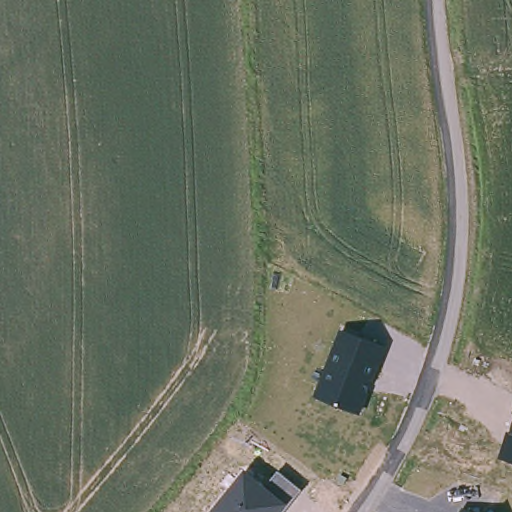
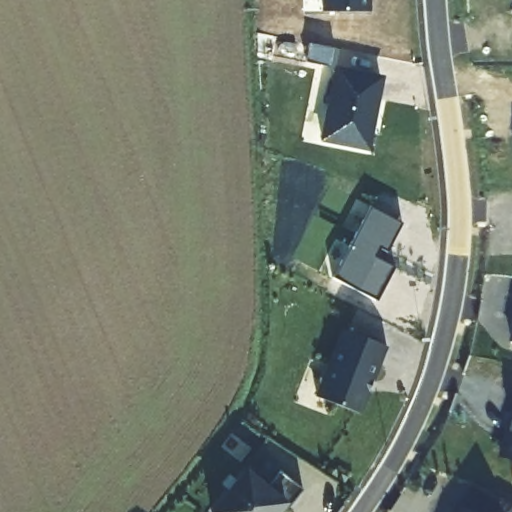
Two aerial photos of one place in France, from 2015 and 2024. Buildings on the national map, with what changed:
new [(323,10),(323,0),(371,0),(371,10),(323,10)]
new [(511,0),(512,0),(512,5),(511,5),(511,0)]
new [(320,140),(336,65),(385,75),(370,150),(320,140)]
new [(333,277),(371,207),(401,224),(387,250),(379,246),(373,257),(393,267),(377,300),(333,277)]
unchanged [(387,346),(360,415),(313,396),(340,328),(387,346)]
new [(512,333),(512,342),(510,342),(512,333)]
unchanged [(512,462),(498,458),(512,414),(512,462)]
unchanged [(278,470),(302,490),(285,512),(210,512),(246,468),(267,485),(278,470)]
new [(512,506),(512,512),(493,512),(501,500),(512,506)]
unchanged [(476,512),(461,512),(465,505),(476,512)]

